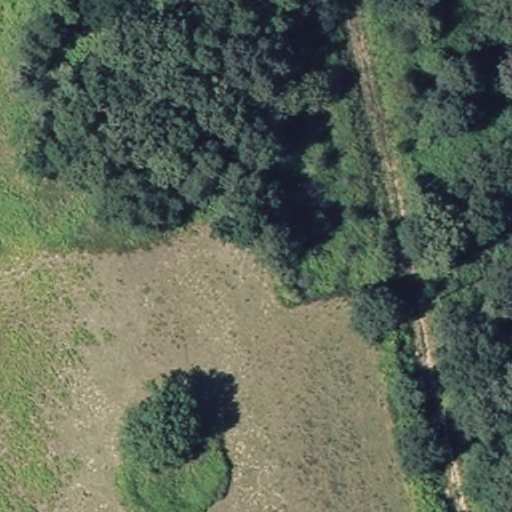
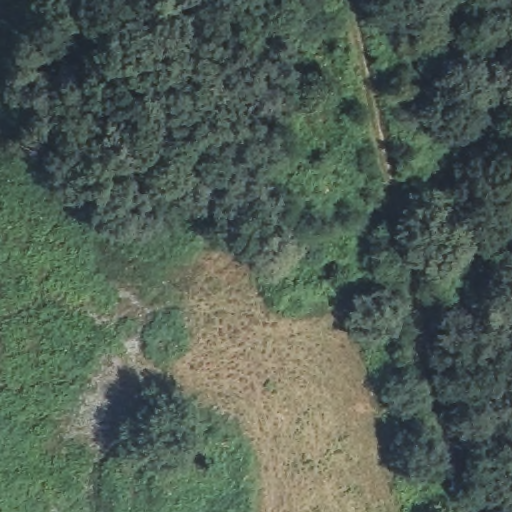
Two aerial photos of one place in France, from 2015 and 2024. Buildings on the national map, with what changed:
[]

